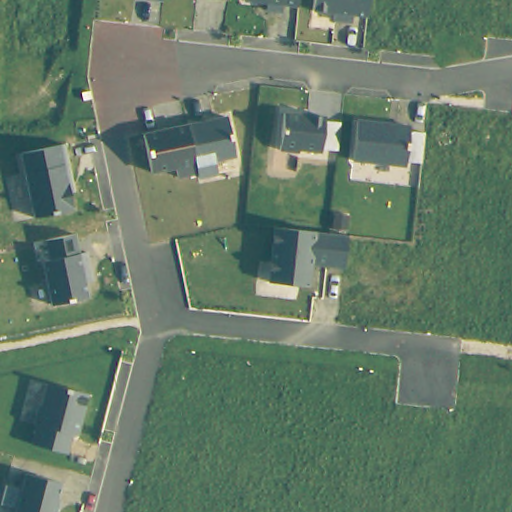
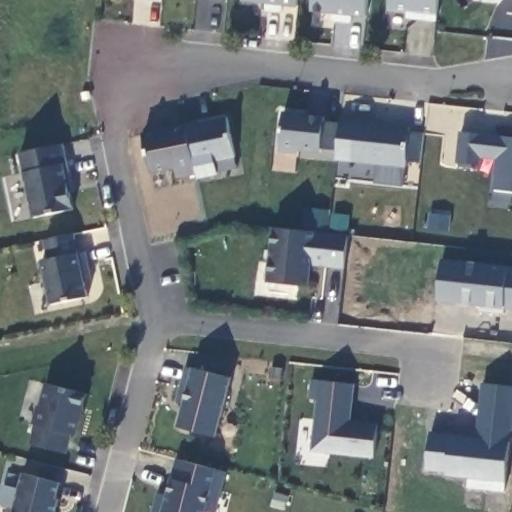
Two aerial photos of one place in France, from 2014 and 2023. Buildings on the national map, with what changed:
unchanged [(163,0),(162,2),(150,0),(163,0)]
unchanged [(281,13),(266,11),(266,4),(243,0),(299,0),(299,6),(282,6),(281,13)]
unchanged [(351,24),(332,21),(333,13),(312,11),(313,0),(370,0),(368,17),(352,16),(351,24)]
unchanged [(436,22),(407,19),(407,13),(390,12),(391,0),(439,0),(437,15),(436,22)]
unchanged [(286,112),(325,118),(325,123),(340,124),(337,150),(323,149),(321,153),(302,149),(300,154),(280,151),(286,112)]
unchanged [(144,134),(226,115),(237,157),(216,161),(219,175),(200,179),(198,174),(177,178),(175,169),(151,172),(144,134)]
unchanged [(357,119),(411,124),(410,132),(425,133),(422,163),(408,161),(407,168),(352,161),(357,119)]
new [(493,189),(496,160),(482,159),(481,165),(456,162),(460,130),(512,137),(512,191),(493,189)]
unchanged [(21,154),(61,144),(75,211),(35,219),(21,154)]
unchanged [(268,283),(275,229),(347,237),(343,267),(315,264),(311,287),(268,283)]
unchanged [(42,260),(48,259),(44,241),(74,234),(77,253),(89,251),(94,279),(85,282),(89,299),(54,308),(42,260)]
new [(457,303),(438,300),(442,259),(470,262),(508,267),(512,268),(512,309),(505,309),(504,313),(481,311),(481,306),(457,303)]
new [(178,428),(195,368),(233,377),(218,436),(178,428)]
new [(378,424),(374,458),(313,450),(318,400),(311,399),(313,379),(356,384),(352,422),(378,424)]
new [(477,437),(479,419),(480,403),(482,382),(512,385),(512,419),(511,423),(505,489),(468,486),(470,476),(447,474),(447,470),(426,468),(430,432),(477,437)]
unchanged [(32,444),(47,386),(85,396),(69,454),(32,444)]
new [(177,458),(225,471),(215,512),(212,512),(205,510),(205,512),(153,512),(156,499),(166,502),(168,494),(177,458)]
unchanged [(15,508),(0,504),(0,499),(4,484),(20,489),(24,474),(62,482),(55,512),(14,512),(15,508)]

